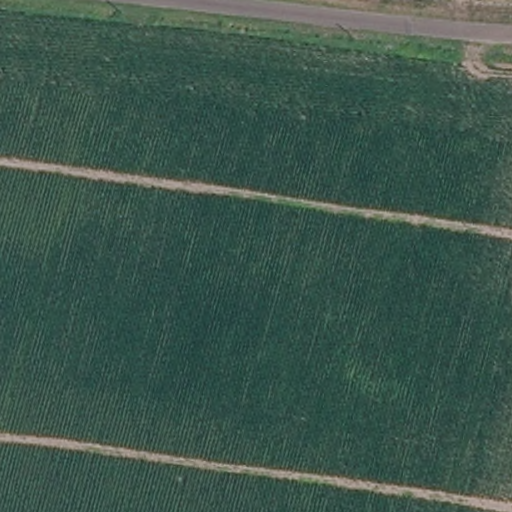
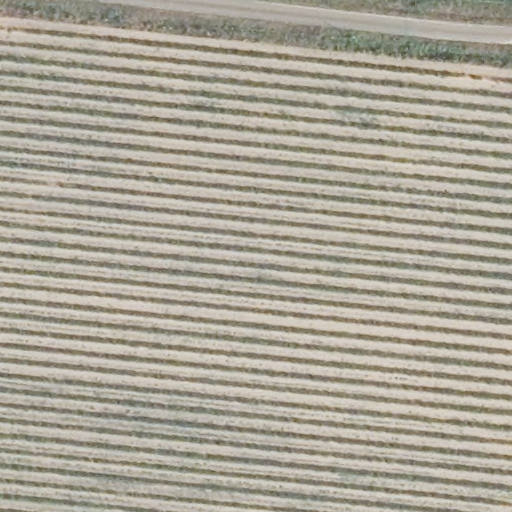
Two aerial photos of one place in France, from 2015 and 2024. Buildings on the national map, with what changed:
[]

